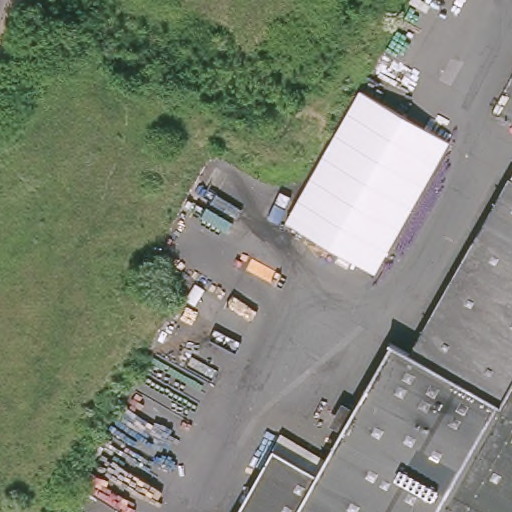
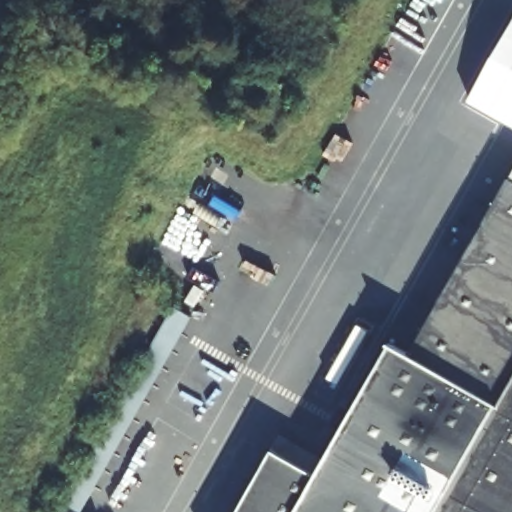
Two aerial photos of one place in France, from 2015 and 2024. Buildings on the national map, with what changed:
demolished [(384,47),(411,0),(471,0),(430,73),(384,47)]
new [(512,124),(470,100),(495,55),(512,25),(512,124)]
demolished [(448,143),(375,275),(285,223),(359,92),(448,143)]
unchanged [(508,177),(512,179),(512,200),(498,191),(508,177)]
unchanged [(512,200),(512,231),(485,215),(498,191),(512,200)]
unchanged [(512,512),(235,512),(270,449),(313,470),(370,387),(391,346),(406,354),(485,215),(512,231),(512,512)]

